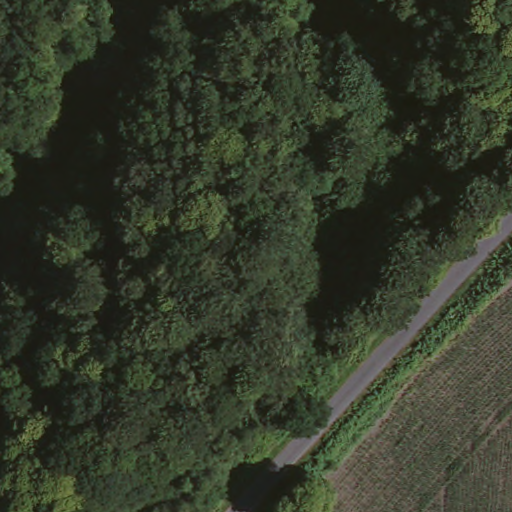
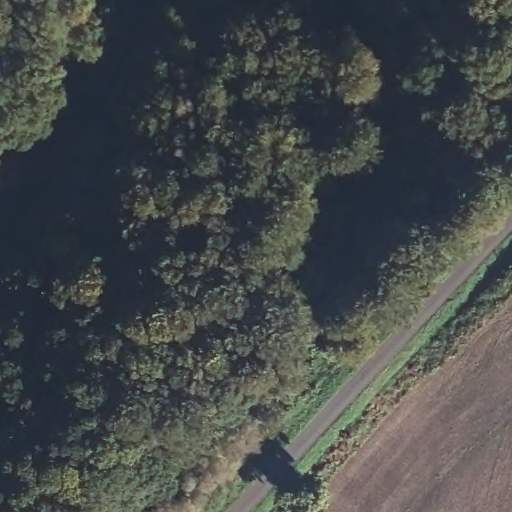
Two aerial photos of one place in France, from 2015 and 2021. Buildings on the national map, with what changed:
[]

